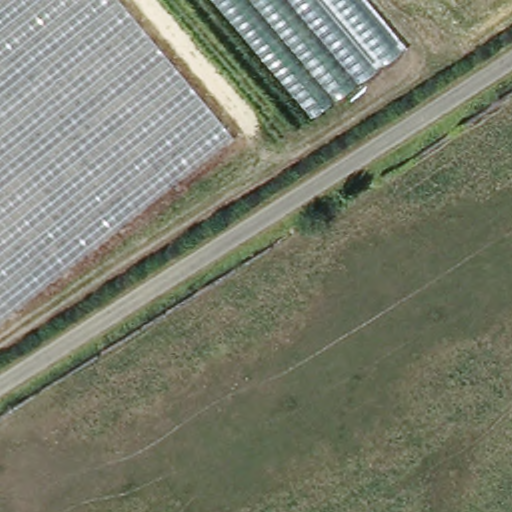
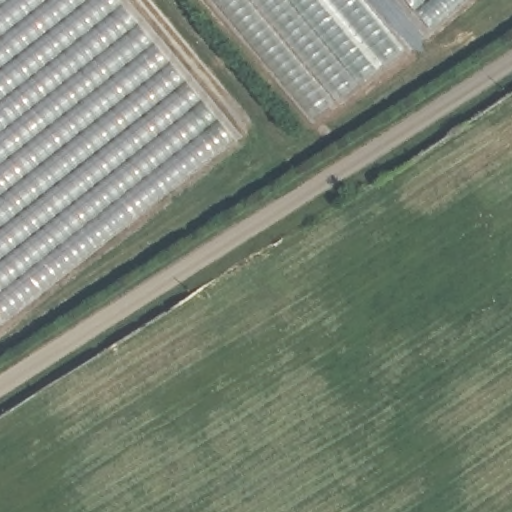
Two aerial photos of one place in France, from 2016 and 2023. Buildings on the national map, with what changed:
unchanged [(0,0),(119,0),(234,137),(0,319),(0,0)]
new [(406,0),(460,0),(428,26),(406,0)]

